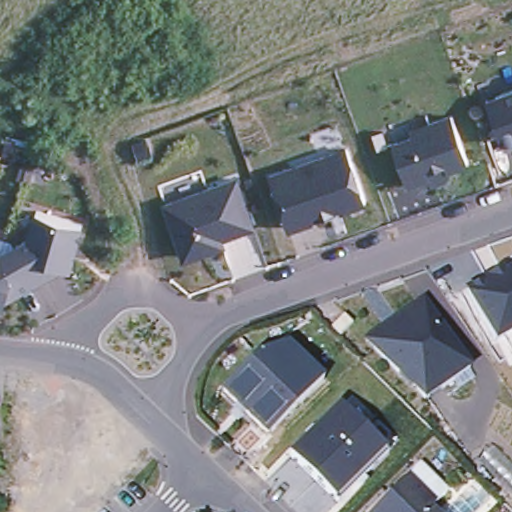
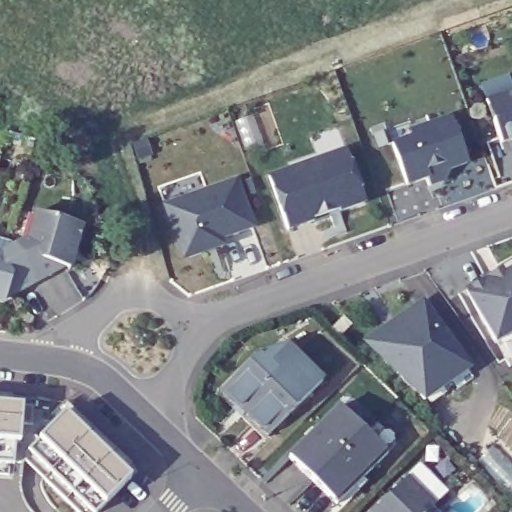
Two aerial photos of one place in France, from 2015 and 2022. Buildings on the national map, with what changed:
unchanged [(494,121),(487,101),(496,98),(512,92),(512,145),(503,148),(502,143),(494,121)]
unchanged [(407,184),(392,144),(413,136),(411,131),(430,124),(452,116),(468,162),(449,169),(444,180),(431,185),(428,177),(407,184)]
unchanged [(288,229),(270,177),(347,149),(365,202),(339,211),(315,220),(288,229)]
unchanged [(201,253),(190,257),(181,253),(165,205),(236,180),(253,227),(221,239),(223,245),(201,253)]
unchanged [(15,252),(28,244),(36,217),(82,230),(75,253),(70,251),(63,272),(35,288),(15,252)]
unchanged [(5,304),(0,302),(0,258),(1,259),(15,252),(35,288),(5,304)]
unchanged [(498,333),(491,337),(462,286),(482,274),(496,266),(499,270),(512,262),(512,348),(508,351),(498,333)]
unchanged [(441,338),(446,334),(470,368),(425,400),(404,370),(398,374),(368,343),(384,328),(391,337),(402,329),(396,320),(419,305),(441,338)]
unchanged [(343,318),(351,325),(339,338),(333,332),(331,330),(343,318)]
unchanged [(261,430),(215,384),(251,349),(280,339),(292,351),(316,375),(261,430)]
new [(14,398),(13,407),(0,405),(0,396),(14,398)]
new [(27,457),(25,456),(29,452),(28,452),(64,416),(58,410),(65,404),(132,466),(125,474),(131,479),(99,512),(77,512),(43,478),(25,461),(24,460),(27,457)]
unchanged [(334,498),(290,455),(342,405),(386,452),(388,455),(337,502),(334,498)]
new [(35,409),(32,427),(22,426),(20,444),(16,444),(15,466),(0,464),(0,406),(35,409)]
unchanged [(364,510),(363,509),(397,475),(402,470),(415,484),(428,498),(425,502),(434,512),(364,512),(364,510)]

